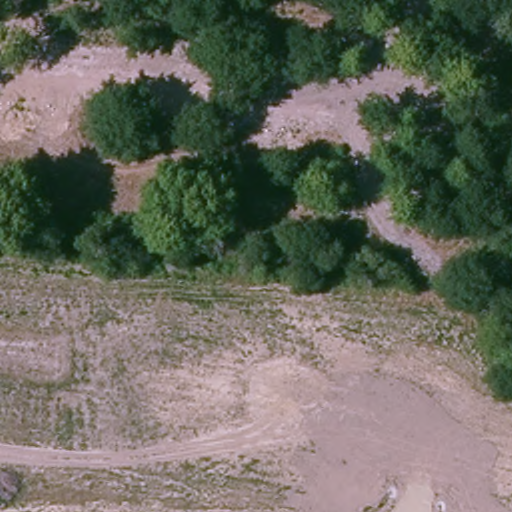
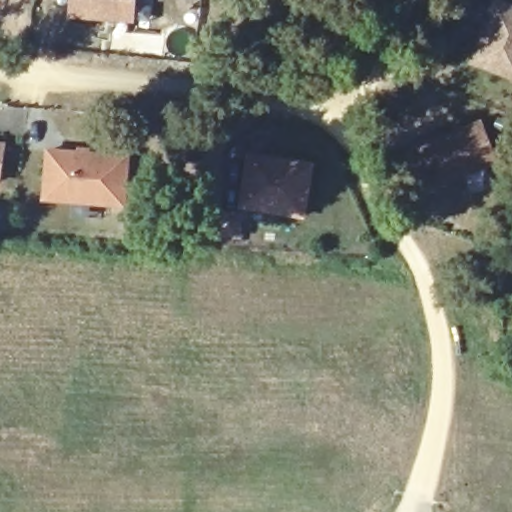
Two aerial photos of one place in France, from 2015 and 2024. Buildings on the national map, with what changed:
new [(71,0),(137,0),(135,24),(70,18),(71,0)]
new [(493,0),(500,0),(512,4),(512,80),(470,64),(493,0)]
new [(433,187),(418,145),(483,121),(500,164),(433,187)]
new [(0,142),(8,143),(1,187),(0,187),(0,142)]
new [(44,201),(47,150),(131,157),(127,207),(44,201)]
new [(234,208),(242,152),(315,163),(306,220),(234,208)]
new [(219,214),(242,215),(241,237),(218,237),(219,214)]

